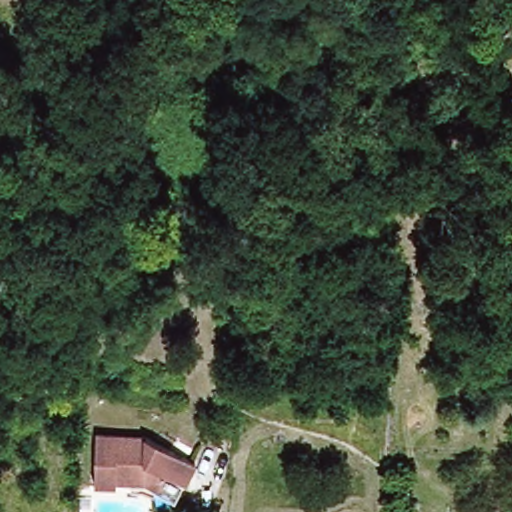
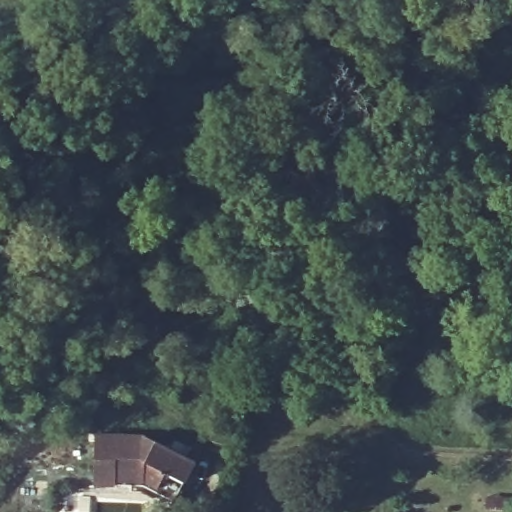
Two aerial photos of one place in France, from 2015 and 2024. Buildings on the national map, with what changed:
unchanged [(168,478),(163,486),(152,481),(141,479),(141,475),(122,474),(102,473),(103,425),(154,425),(200,449),(192,470),(183,486),(168,478)]

